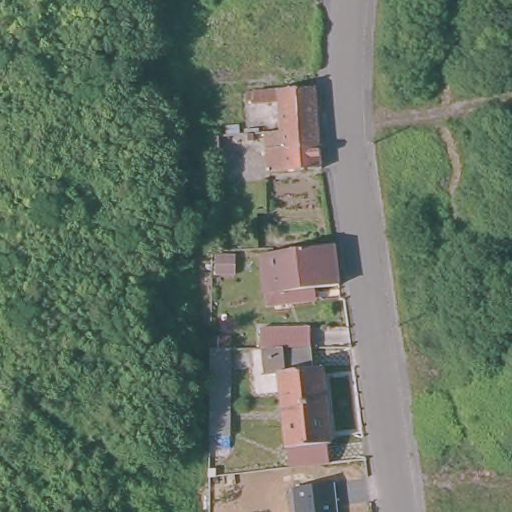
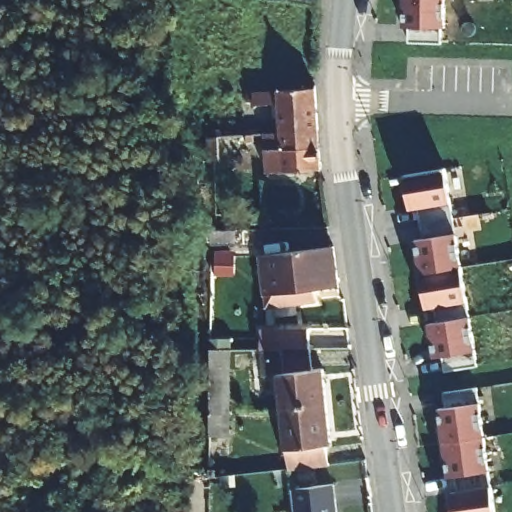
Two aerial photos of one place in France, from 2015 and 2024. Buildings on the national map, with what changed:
new [(443,42),(407,42),(406,0),(443,0),(443,42)]
unchanged [(263,171),(258,132),(276,131),(276,124),(255,125),(252,92),(309,86),(311,94),(319,165),(314,166),(263,171)]
unchanged [(189,140),(200,140),(199,166),(189,166),(189,140)]
new [(479,365),(448,372),(446,357),(438,357),(433,326),(439,326),(437,307),(428,310),(416,241),(424,239),(419,210),(412,211),(404,176),(443,169),(479,365)]
unchanged [(324,246),(330,246),(336,285),(259,288),(258,251),(324,246)]
unchanged [(201,258),(203,277),(188,277),(188,260),(201,258)]
unchanged [(253,352),(251,330),(301,328),(306,351),(253,352)]
unchanged [(207,437),(207,413),(208,347),(227,347),(228,412),(228,436),(207,437)]
unchanged [(306,351),(311,371),(319,370),(325,408),(278,412),(271,377),(259,377),(253,352),(306,351)]
new [(455,512),(453,493),(460,492),(458,476),(449,477),(440,410),(448,408),(444,392),(478,387),(497,512),(455,512)]
unchanged [(289,470),(278,412),(325,408),(334,465),(289,470)]
unchanged [(338,512),(296,512),(293,487),(336,483),(338,512)]

